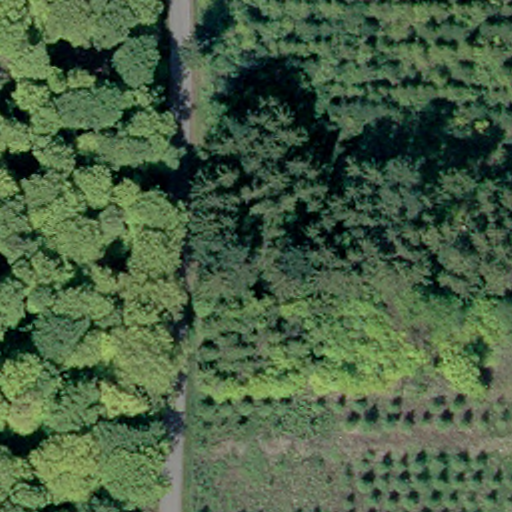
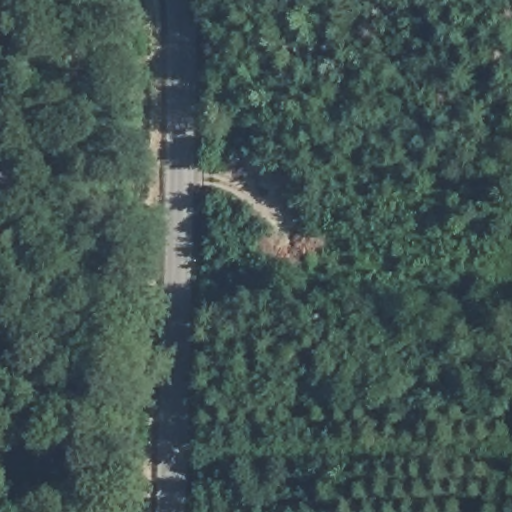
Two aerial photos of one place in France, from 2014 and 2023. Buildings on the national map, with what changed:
unchanged [(412,266),(412,283),(397,283),(397,266),(412,266)]

